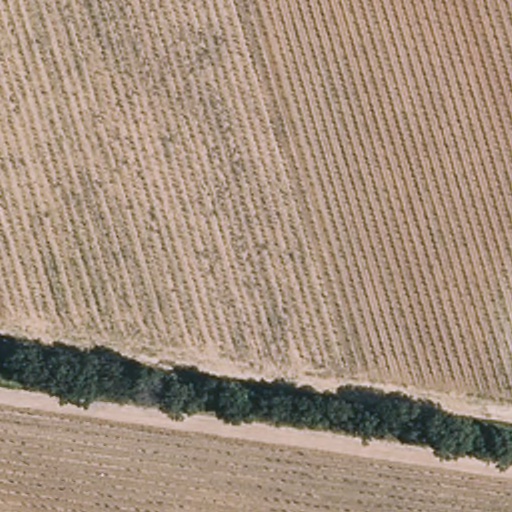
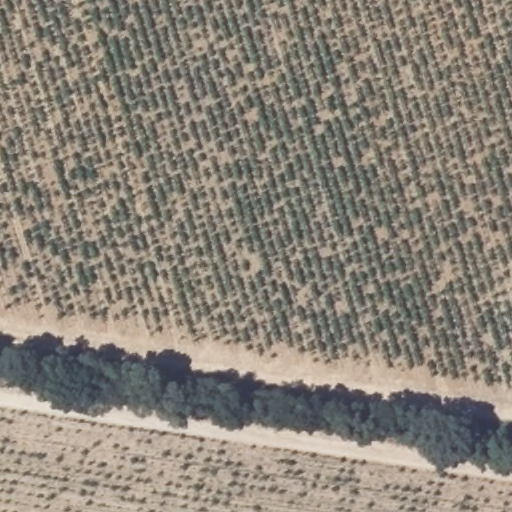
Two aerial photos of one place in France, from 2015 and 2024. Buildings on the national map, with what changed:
[]

